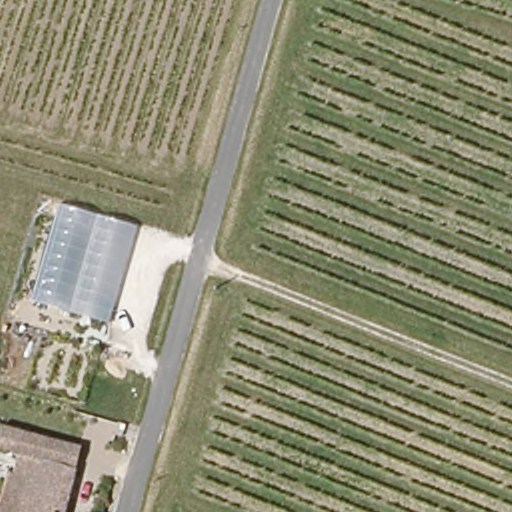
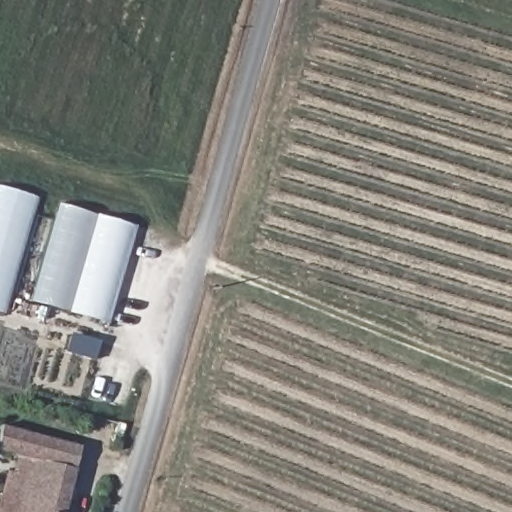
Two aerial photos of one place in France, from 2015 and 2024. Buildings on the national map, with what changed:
new [(0,311),(0,188),(39,198),(6,312),(0,311)]
unchanged [(108,323),(31,301),(58,204),(136,225),(108,323)]
unchanged [(0,451),(0,444),(5,426),(82,448),(64,512),(0,512),(16,455),(0,451)]

